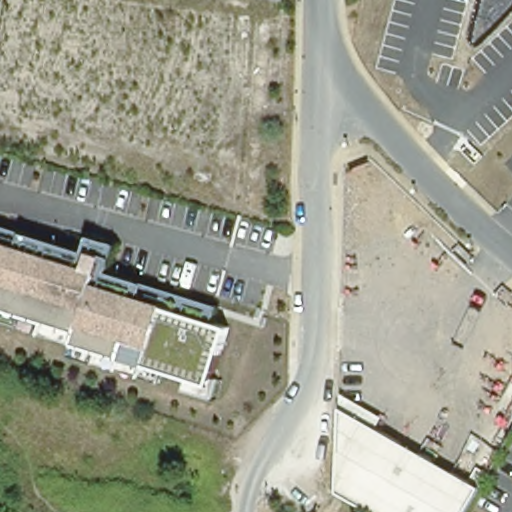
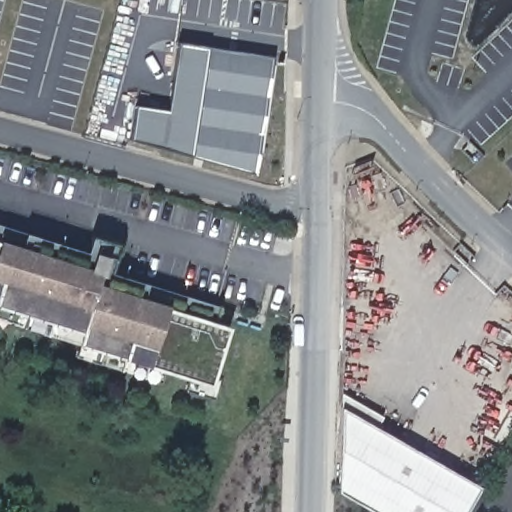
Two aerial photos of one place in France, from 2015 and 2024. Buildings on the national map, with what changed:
new [(154,105),(172,108),(181,44),(272,57),(258,159),(148,142),(154,105)]
unchanged [(28,235),(88,252),(92,237),(120,244),(111,274),(146,285),(218,307),(214,324),(228,328),(211,383),(209,396),(185,390),(189,377),(166,370),(163,383),(73,357),(78,344),(0,321),(0,226),(28,235)]
unchanged [(345,409),(481,490),(468,512),(376,512),(342,492),(345,409)]
unchanged [(479,471),(489,477),(484,485),(482,488),(472,482),(479,471)]

